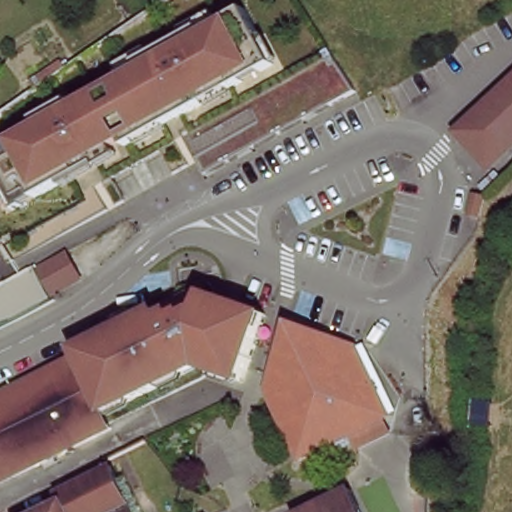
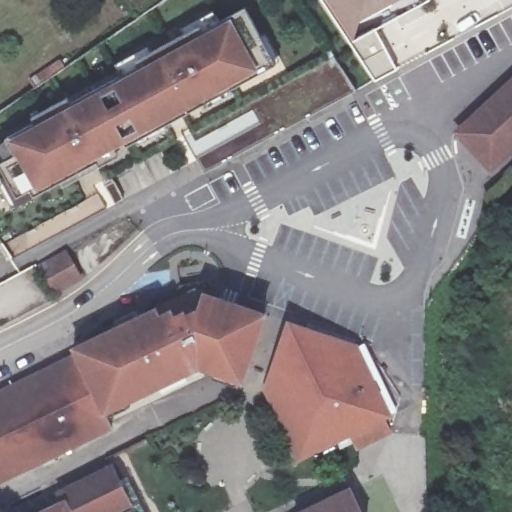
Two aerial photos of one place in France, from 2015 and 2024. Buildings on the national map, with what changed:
unchanged [(40,127),(76,108),(79,113),(104,99),(145,77),(137,62),(249,0),(250,0),(276,47),(284,43),(302,77),(192,146),(103,195),(117,218),(25,269),(0,226),(0,156),(43,133),(40,127)]
new [(377,29),(398,68),(378,79),(355,42),(327,0),(430,0),(377,29)]
unchanged [(302,77),(336,58),(363,99),(212,183),(192,146),(302,77)]
unchanged [(494,173),(454,130),(512,77),(512,155),(494,173)]
unchanged [(492,193),(487,214),(477,212),(483,190),(492,193)]
unchanged [(81,282),(82,283),(56,299),(35,270),(63,254),(81,282)]
unchanged [(8,483),(4,475),(0,477),(0,401),(75,364),(73,359),(71,353),(70,351),(70,349),(116,328),(134,319),(155,309),(161,316),(170,313),(173,318),(184,314),(195,313),(200,294),(252,310),(268,315),(249,369),(215,358),(102,414),(108,425),(110,424),(114,431),(102,437),(83,446),(53,461),(18,478),(8,483)]
unchanged [(370,369),(379,389),(382,394),(387,407),(391,416),(385,419),(387,424),(392,433),(359,449),(354,440),(352,436),(310,457),(301,461),(288,434),(269,396),(266,391),(285,337),(291,321),(307,326),(359,344),(370,369)]
unchanged [(60,495),(121,465),(144,512),(41,512),(63,502),(60,495)]
unchanged [(363,512),(305,512),(353,490),(363,512)]

